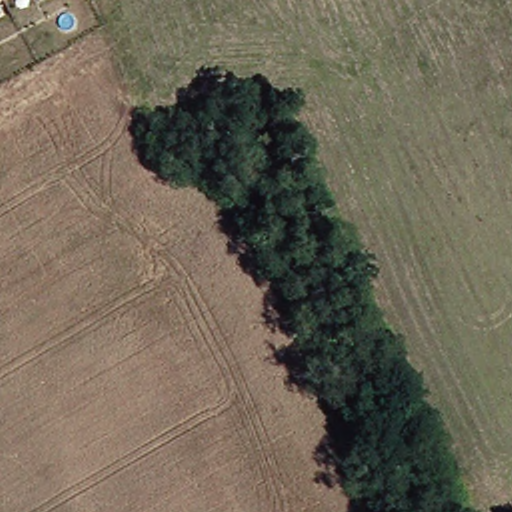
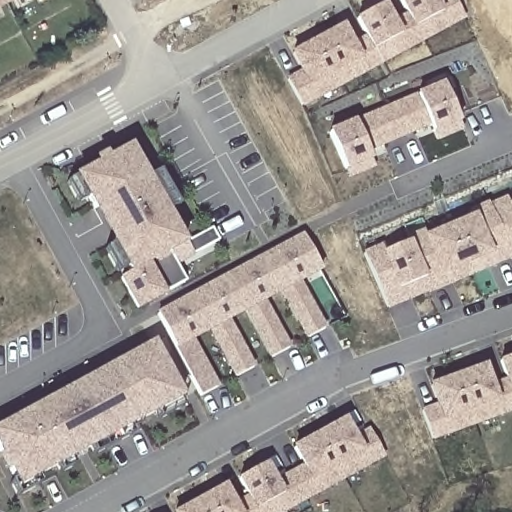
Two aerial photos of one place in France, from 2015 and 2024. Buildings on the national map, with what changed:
unchanged [(0,0),(2,0),(0,1),(0,0)]
unchanged [(38,0),(43,0),(39,3),(38,0)]
new [(452,25),(448,17),(422,31),(427,39),(410,47),(406,39),(380,52),(385,61),(369,70),(364,61),(314,86),(320,96),(304,105),(291,80),(308,70),(298,53),(348,28),(356,43),(372,34),(364,19),(390,5),(398,21),(414,12),(409,0),(457,0),(466,16),(452,25)]
new [(467,120),(439,132),(436,125),(376,150),(378,156),(351,168),(334,130),(451,81),(467,120)]
new [(160,177),(170,172),(190,206),(181,211),(198,241),(216,231),(224,246),(182,268),(191,285),(174,295),(175,298),(144,313),(126,281),(138,273),(84,177),(106,165),(104,160),(118,152),(120,157),(141,146),(160,177)]
new [(389,307),(365,253),(381,246),(385,253),(412,241),(409,235),(422,229),(427,237),(481,214),(478,207),(505,196),(511,206),(512,205),(512,260),(389,307)]
new [(330,272),(307,285),(332,330),(310,341),(285,298),(272,305),(296,348),(272,361),(249,317),(237,324),(260,367),(237,380),(214,337),(201,343),(225,387),(208,396),(163,314),(309,234),(330,272)]
new [(29,490),(19,473),(14,475),(5,459),(10,456),(0,437),(0,430),(162,344),(193,401),(29,490)]
new [(437,441),(425,411),(441,405),(435,387),(493,366),(500,384),(510,380),(503,361),(512,358),(512,414),(437,441)]
new [(363,435),(374,429),(390,459),(292,512),(184,512),(235,485),(244,500),(252,497),(243,481),(275,463),(283,477),(306,463),(298,448),(353,419),(363,435)]

